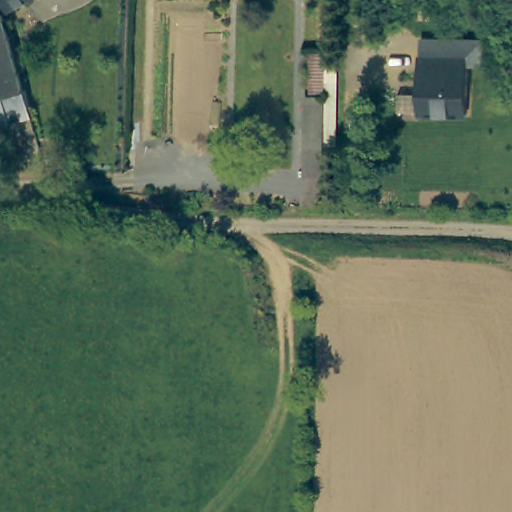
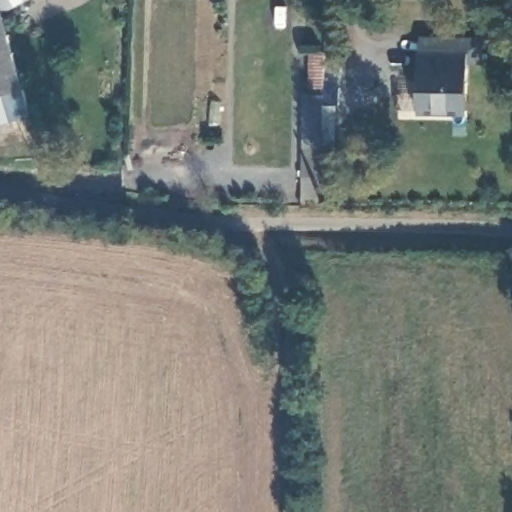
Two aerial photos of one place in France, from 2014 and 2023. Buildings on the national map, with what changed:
unchanged [(0,0),(22,0),(3,10),(0,0)]
unchanged [(30,116),(6,122),(7,124),(0,126),(0,0),(3,10),(9,34),(30,116)]
unchanged [(483,39),(482,65),(467,66),(467,116),(417,116),(417,111),(397,112),(397,93),(416,93),(419,56),(419,37),(483,39)]
unchanged [(308,168),(309,86),(315,87),(316,44),(331,44),(329,168),(329,198),(308,198),(308,168)]

